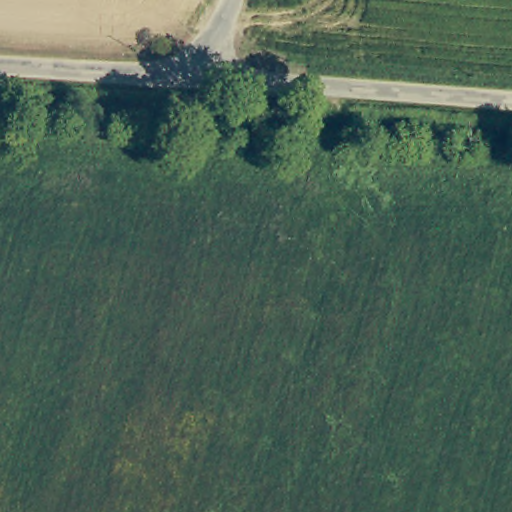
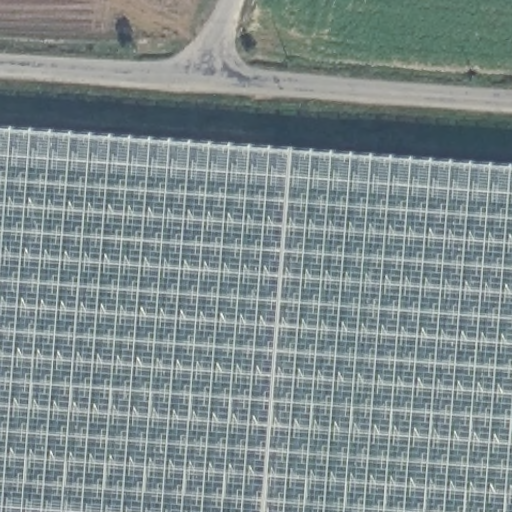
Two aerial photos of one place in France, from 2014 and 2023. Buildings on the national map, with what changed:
new [(512,165),(512,512),(0,512),(0,126),(512,165)]

